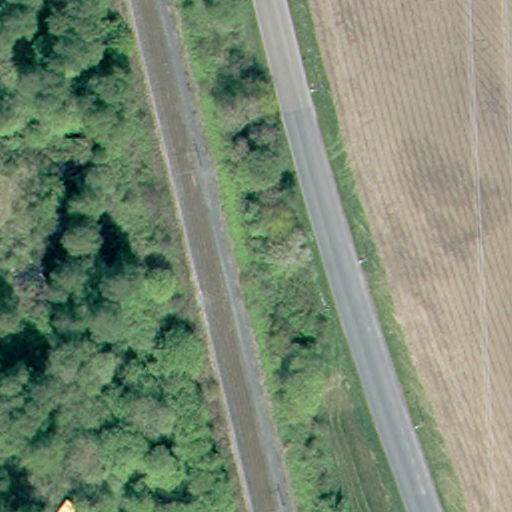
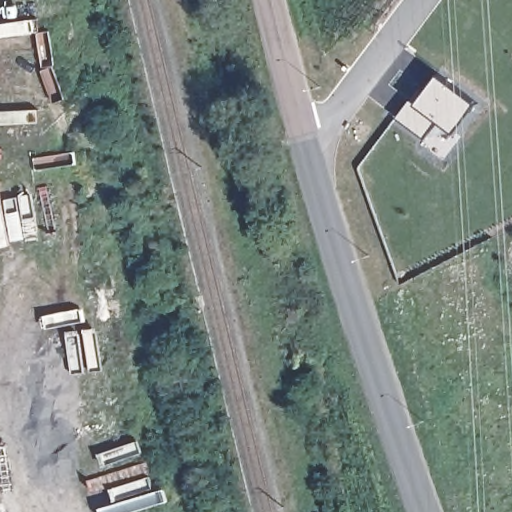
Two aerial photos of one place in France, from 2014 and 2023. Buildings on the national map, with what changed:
new [(417,89),(423,92),(436,77),(475,107),(452,137),(435,125),(422,142),(393,121),(417,89)]

